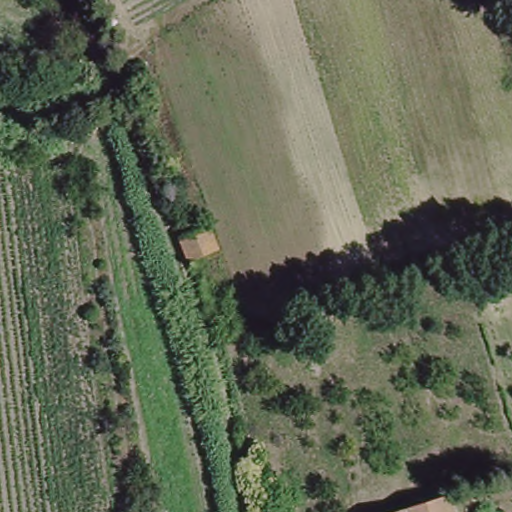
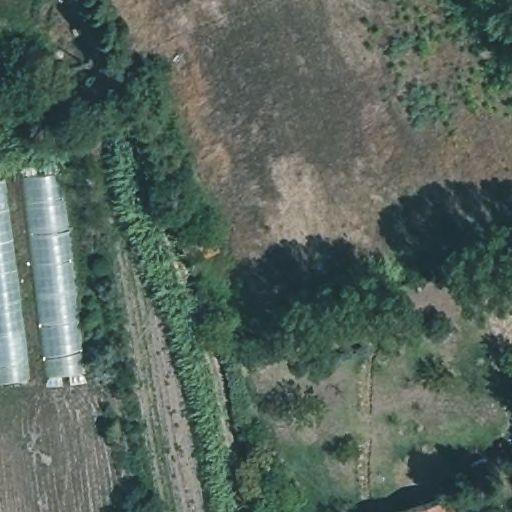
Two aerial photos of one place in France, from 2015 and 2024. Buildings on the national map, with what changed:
new [(47,377),(24,178),(62,173),(85,372),(47,377)]
new [(29,379),(0,382),(0,180),(6,180),(29,379)]
unchanged [(185,234),(215,223),(224,248),(195,260),(185,234)]
unchanged [(409,509),(443,498),(447,512),(399,512),(409,509)]

